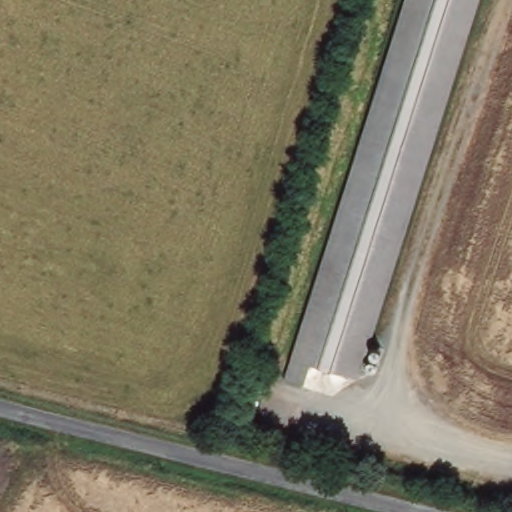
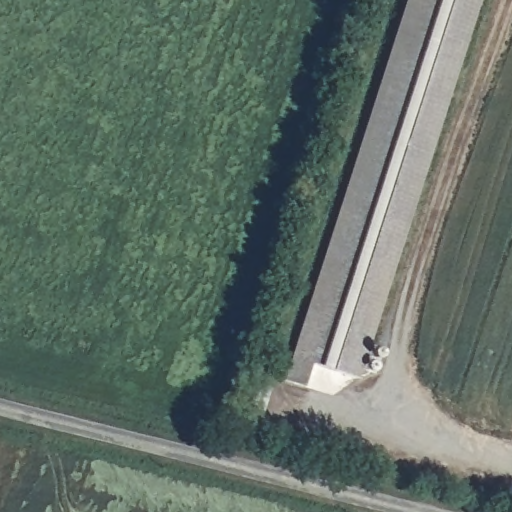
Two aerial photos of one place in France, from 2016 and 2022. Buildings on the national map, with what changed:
unchanged [(374,348),(382,349),(375,375),(361,370),(358,379),(311,362),(301,386),(283,378),(407,0),(481,0),(374,348)]

